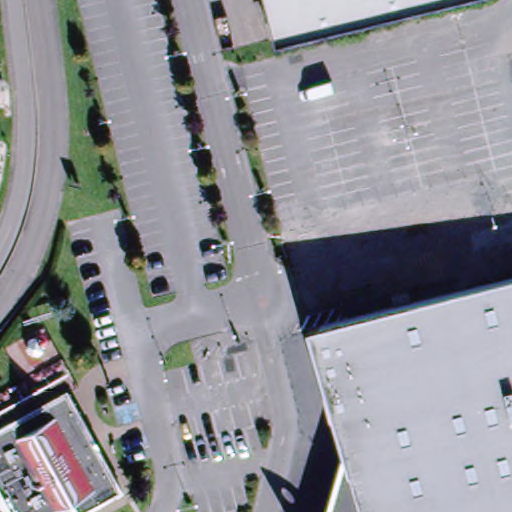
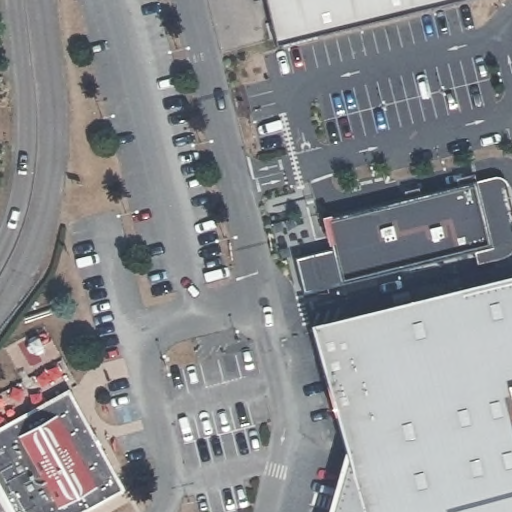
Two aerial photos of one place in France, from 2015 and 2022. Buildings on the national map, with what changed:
unchanged [(273,49),(262,0),(468,0),(373,24),(273,49)]
new [(494,172),(496,181),(477,185),(475,177),(494,172)]
new [(476,256),(495,252),(303,297),(295,261),(331,252),(325,227),(323,227),(321,219),(330,217),(331,219),(477,184),(477,185),(500,181),(505,182),(508,186),(512,200),(512,260),(479,267),(476,256)]
new [(425,196),(423,189),(439,185),(440,192),(425,196)]
unchanged [(351,476),(311,328),(512,281),(512,512),(351,512),(351,476)]
new [(410,302),(394,307),(392,300),(408,296),(410,302)]
unchanged [(130,492),(94,512),(0,512),(0,430),(74,390),(130,492)]
unchanged [(343,476),(351,476),(351,512),(331,512),(343,476)]

